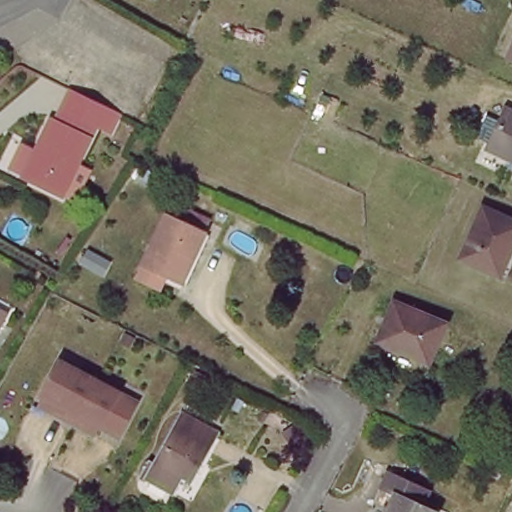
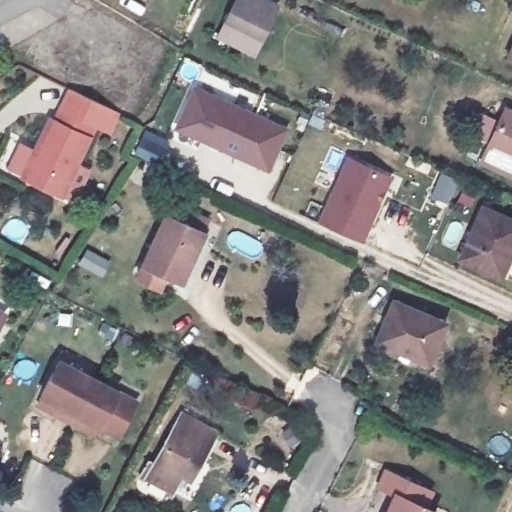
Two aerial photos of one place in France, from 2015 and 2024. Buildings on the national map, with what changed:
new [(264,41),(223,21),(234,0),(273,0),(282,4),(264,41)]
unchanged [(35,147),(51,117),(56,119),(64,104),(74,84),(127,112),(116,131),(97,121),(61,195),(27,177),(21,174),(35,147)]
new [(291,128),(271,172),(173,129),(194,84),(291,128)]
unchanged [(494,130),(507,101),(512,103),(512,152),(489,140),(492,134),(494,130)]
new [(394,175),(363,241),(317,220),(347,156),(394,175)]
unchanged [(512,253),(502,275),(464,256),(487,205),(512,218),(512,253)]
unchanged [(167,281),(162,292),(141,282),(139,282),(145,270),(169,220),(176,206),(212,222),(206,236),(181,287),(167,281)]
unchanged [(375,340),(393,298),(445,323),(427,363),(375,340)]
unchanged [(11,310),(8,316),(0,331),(0,304),(11,310)]
unchanged [(72,418),(57,411),(36,398),(40,390),(58,356),(134,397),(116,432),(97,421),(92,430),(72,418)]
unchanged [(180,474),(172,489),(147,476),(144,481),(136,477),(147,457),(155,462),(181,413),(216,432),(199,462),(190,479),(180,474)]
unchanged [(433,512),(384,512),(394,494),(379,485),(388,470),(427,492),(420,505),(434,512),(433,512)]

